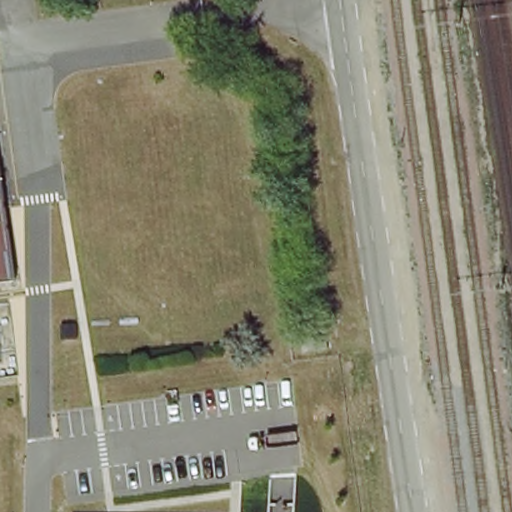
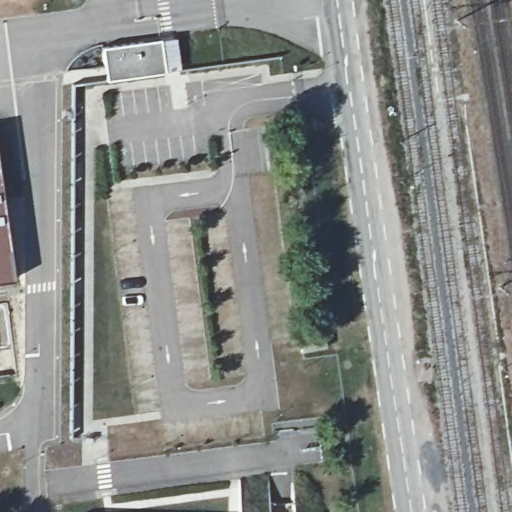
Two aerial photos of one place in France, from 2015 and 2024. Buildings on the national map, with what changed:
demolished [(0,26),(0,8),(2,26),(0,26)]
new [(163,72),(107,81),(102,48),(158,40),(176,39),(180,70),(163,72)]
unchanged [(0,282),(0,176),(15,280),(0,282)]
demolished [(18,373),(0,375),(0,305),(8,304),(18,373)]

